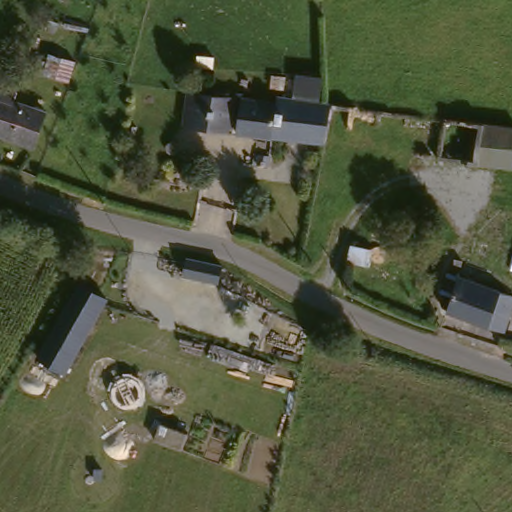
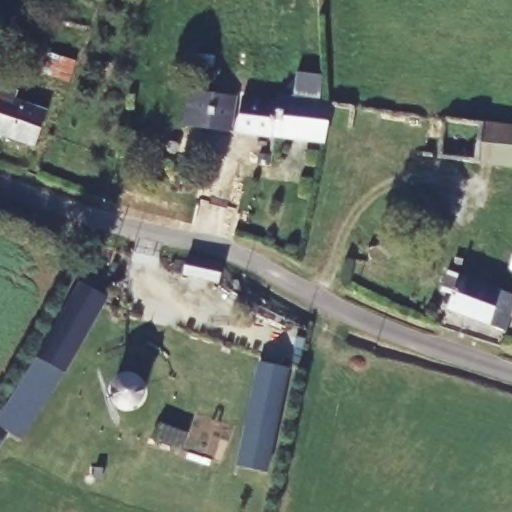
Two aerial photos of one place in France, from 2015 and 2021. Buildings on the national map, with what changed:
unchanged [(75,60),(67,79),(48,73),(55,54),(75,60)]
unchanged [(296,94),(300,73),(325,77),(322,98),(332,100),(332,108),(326,147),(272,144),(275,117),(275,107),(277,93),(296,94)]
unchanged [(22,84),(15,104),(47,115),(34,150),(0,138),(0,99),(1,99),(9,81),(22,84)]
unchanged [(235,102),(231,138),(184,132),(187,96),(235,102)]
unchanged [(272,144),(236,139),(240,103),(275,107),(272,144)]
unchanged [(512,131),(512,172),(472,167),(478,127),(512,131)]
unchanged [(187,259),(220,264),(219,281),(185,276),(187,263),(187,259)]
unchanged [(510,299),(498,333),(444,313),(449,298),(435,294),(441,276),(510,299)]
unchanged [(66,373),(37,357),(79,284),(108,297),(66,373)]
new [(37,357),(64,371),(21,440),(0,426),(0,415),(37,357)]
new [(291,368),(269,473),(235,467),(258,362),(291,368)]
new [(141,382),(143,387),(144,392),(142,399),(137,404),(130,407),(124,407),(112,398),(111,390),(113,383),(116,379),(123,376),(130,375),(136,378),(141,382)]

